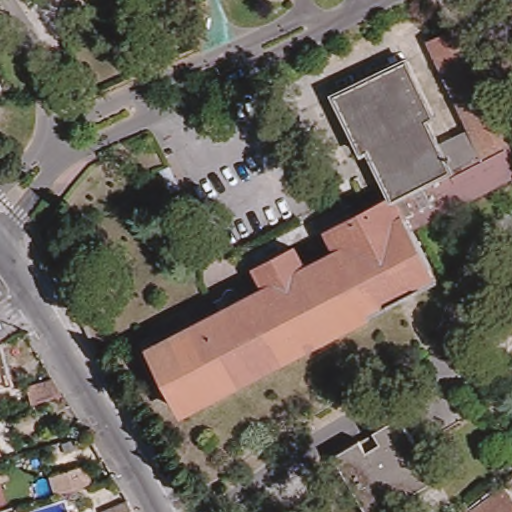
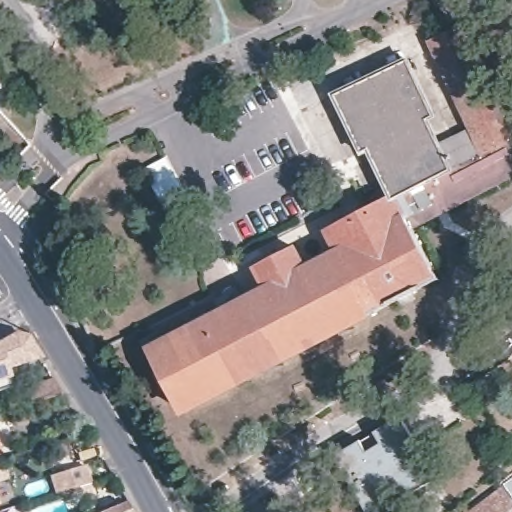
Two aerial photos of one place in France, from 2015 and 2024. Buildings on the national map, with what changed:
unchanged [(189,404),(156,342),(273,282),(263,261),(300,242),(311,263),(344,245),(334,225),(391,196),(369,155),(361,159),(331,101),(403,65),(432,119),(425,122),(438,146),(469,129),(425,41),(448,29),(433,0),(449,0),(457,13),(461,11),(500,90),(512,114),(512,178),(420,225),(445,275),(189,404)]
unchanged [(0,93),(0,74),(6,91),(0,93)]
unchanged [(511,272),(511,271),(511,270),(511,269),(512,268),(512,274),(511,272)]
new [(29,334),(38,346),(41,346),(45,358),(10,369),(13,383),(0,388),(0,342),(16,333),(29,334)]
demolished [(14,385),(0,390),(0,346),(1,346),(14,385)]
unchanged [(63,395),(34,404),(31,389),(54,381),(63,395)]
unchanged [(436,480),(411,494),(407,488),(393,495),(397,503),(380,512),(366,512),(333,453),(359,437),(366,449),(381,441),(374,429),(398,416),(436,480)]
unchanged [(0,451),(0,439),(3,451),(0,451)]
unchanged [(93,485),(59,495),(53,476),(87,466),(93,485)]
unchanged [(501,487),(512,501),(512,512),(471,512),(501,487)]
unchanged [(130,505),(134,512),(108,512),(130,505)]

